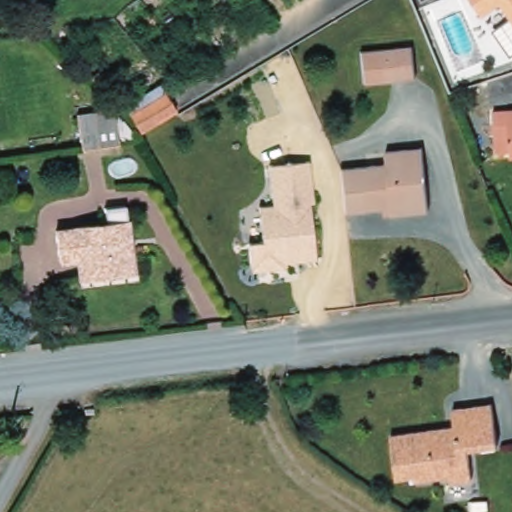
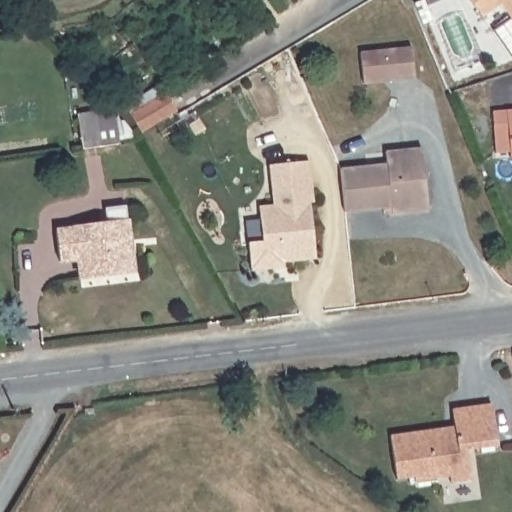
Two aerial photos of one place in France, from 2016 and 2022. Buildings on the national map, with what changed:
unchanged [(497,5),(492,9),(479,18),(466,0),(512,0),(512,25),(497,5)]
unchanged [(363,76),(360,52),(416,46),(421,80),(393,83),(364,86),(363,76)]
unchanged [(160,82),(181,112),(144,135),(124,105),(160,82)]
unchanged [(117,104),(121,145),(84,150),(76,107),(117,104)]
unchanged [(512,107),(512,159),(512,160),(511,152),(496,153),(492,109),(512,107)]
unchanged [(436,211),(399,216),(398,209),(349,215),(342,167),(392,161),(390,149),(426,145),(436,211)]
unchanged [(312,205),(308,205),(313,261),(281,264),(282,269),(249,273),(246,242),(261,240),(258,206),(272,205),(270,165),(310,161),(312,205)]
unchanged [(77,228),(129,222),(133,272),(82,278),(81,260),(63,262),(59,231),(77,228)]
unchanged [(501,406),(505,448),(473,450),(474,481),(452,483),(452,475),(416,480),(416,475),(395,477),(392,435),(457,428),(456,411),(501,406)]

